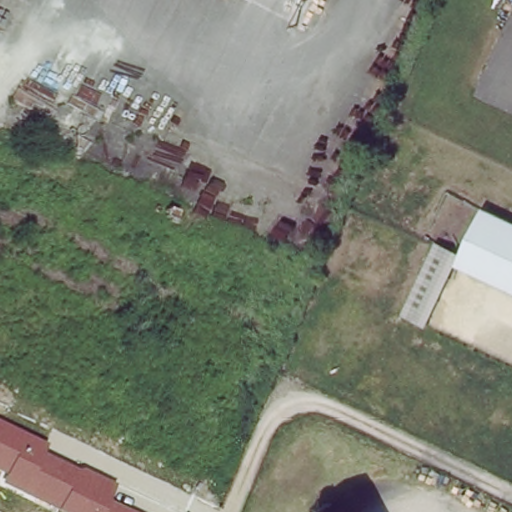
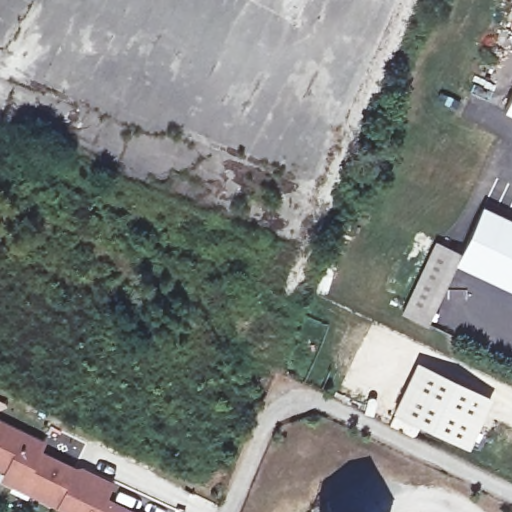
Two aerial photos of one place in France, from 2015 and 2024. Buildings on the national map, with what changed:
new [(504,109),(512,92),(512,113),(504,109)]
unchanged [(512,223),(512,291),(454,264),(459,254),(482,208),(512,223)]
unchanged [(428,327),(404,316),(438,244),(459,254),(454,264),(428,327)]
new [(393,412),(417,362),(492,398),(469,449),(393,412)]
unchanged [(42,450),(77,468),(78,466),(114,483),(108,496),(146,512),(64,512),(0,481),(0,480),(3,473),(0,471),(0,422),(46,443),(42,450)]

